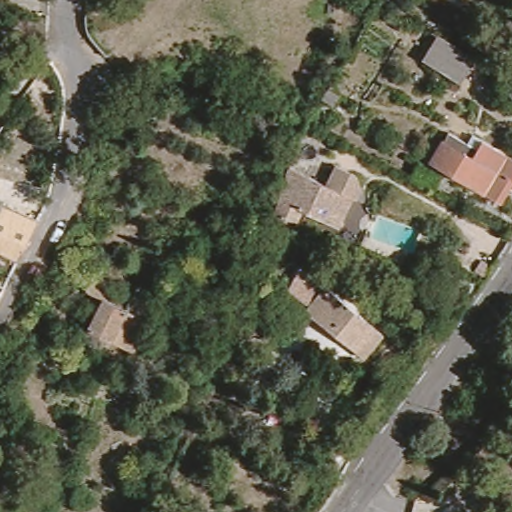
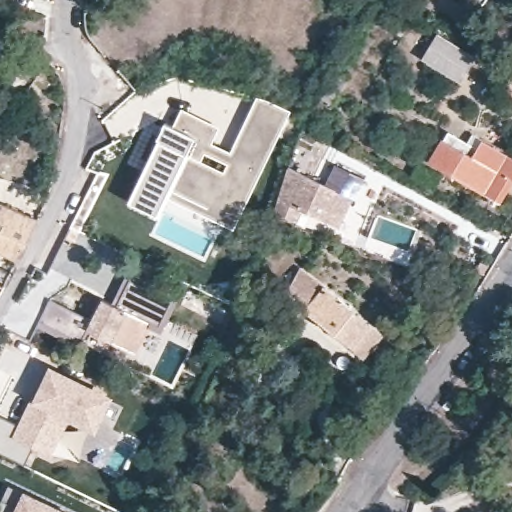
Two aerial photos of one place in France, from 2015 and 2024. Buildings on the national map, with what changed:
unchanged [(444,40),(483,60),(470,82),(432,60),(444,40)]
new [(173,129),(181,111),(216,128),(209,142),(231,153),(258,94),(288,107),(231,217),(168,190),(155,215),(130,201),(166,125),(173,129)]
unchanged [(430,162),(441,142),(447,133),(476,147),(482,140),(512,157),(512,180),(501,202),(486,192),(430,162)]
unchanged [(326,165),(346,175),(353,188),(348,198),(344,197),(332,225),(291,209),(284,222),(265,215),(279,170),(316,186),(326,165)]
unchanged [(53,178),(50,191),(40,189),(43,178),(53,178)]
unchanged [(66,234),(80,206),(91,211),(77,239),(66,234)]
unchanged [(0,258),(0,207),(32,221),(11,263),(0,258)]
new [(118,286),(109,300),(125,308),(151,321),(135,353),(111,340),(86,328),(102,300),(84,291),(95,274),(118,286)]
unchanged [(378,365),(316,321),(319,315),(297,300),(308,280),(338,297),(397,341),(378,365)]
demolished [(103,321),(86,312),(93,297),(117,309),(116,314),(111,325),(122,330),(148,343),(134,373),(106,360),(88,350),(103,321)]
demolished [(131,318),(156,329),(150,340),(126,330),(131,318)]
new [(31,396),(35,396),(50,365),(113,397),(96,435),(67,421),(50,457),(30,447),(23,461),(0,451),(0,417),(15,425),(31,396)]
new [(0,502),(10,483),(66,512),(0,512),(0,502)]

